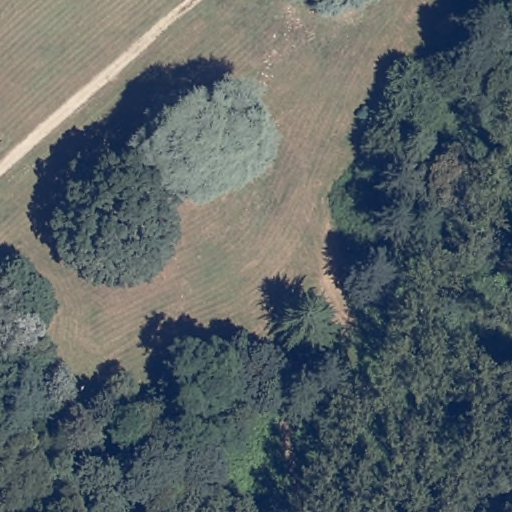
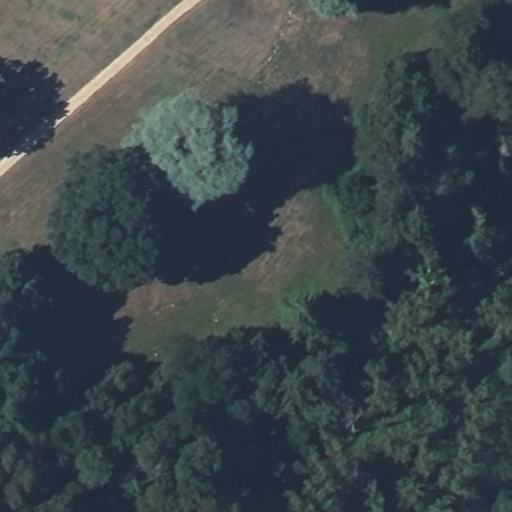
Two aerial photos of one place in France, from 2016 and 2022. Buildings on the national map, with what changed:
[]

